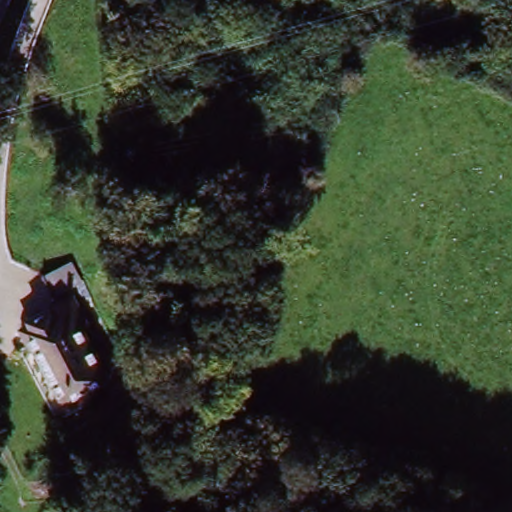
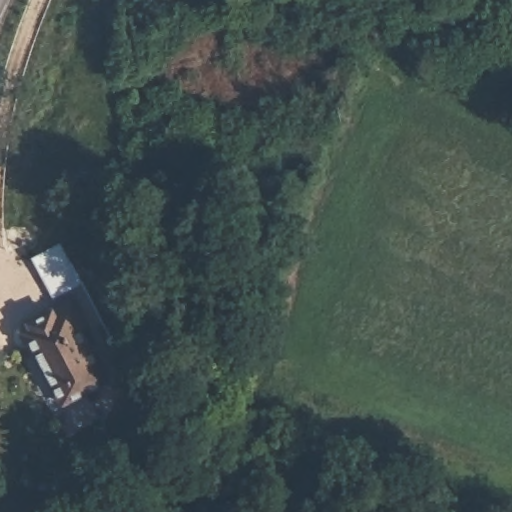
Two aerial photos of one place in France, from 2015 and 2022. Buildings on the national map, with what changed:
unchanged [(70,266),(81,286),(52,300),(42,280),(70,266)]
unchanged [(53,309),(56,315),(69,308),(107,381),(64,404),(35,348),(40,346),(27,322),(53,309)]

